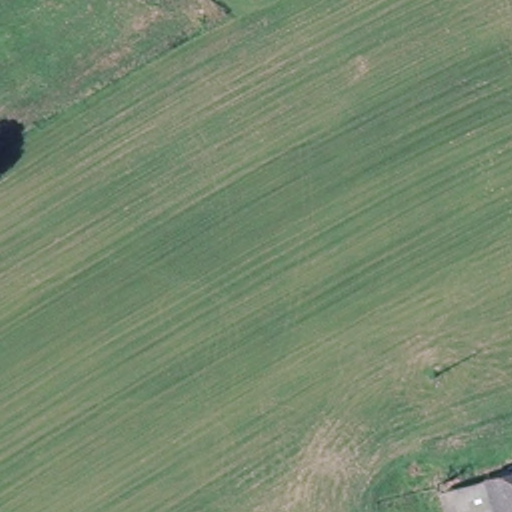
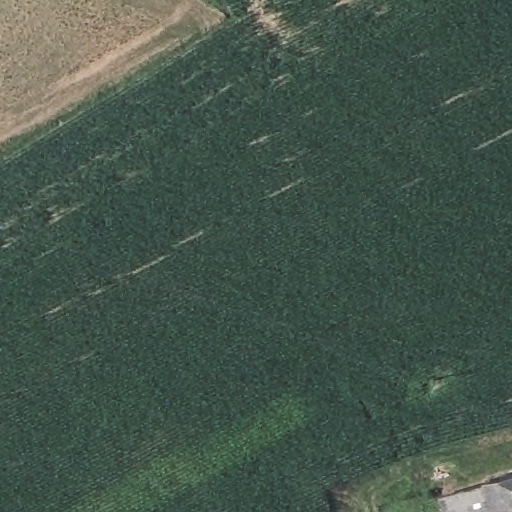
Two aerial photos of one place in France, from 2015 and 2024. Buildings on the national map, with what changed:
unchanged [(512,469),(512,512),(443,512),(436,492),(512,469)]

